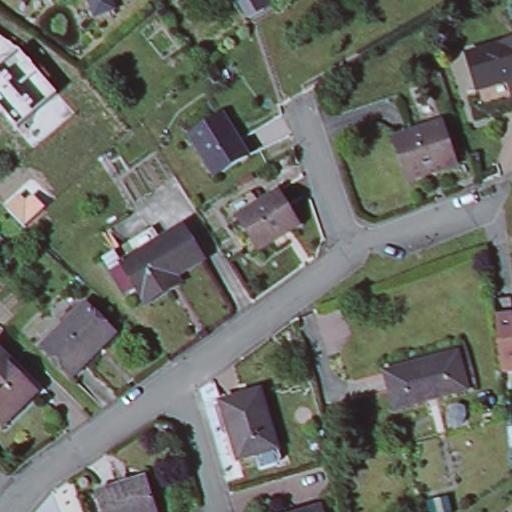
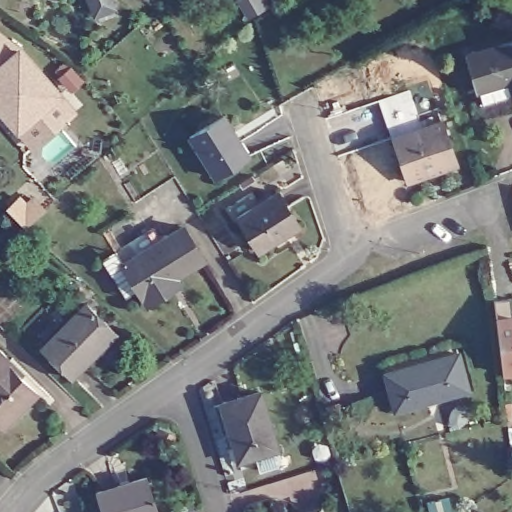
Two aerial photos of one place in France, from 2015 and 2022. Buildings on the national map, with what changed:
new [(21,45),(62,94),(77,113),(31,151),(2,115),(0,116),(0,30),(21,45)]
unchanged [(479,95),(470,59),(512,47),(512,86),(479,95)]
unchanged [(187,140),(220,116),(237,139),(249,155),(217,179),(206,166),(187,140)]
unchanged [(441,121),(454,160),(428,168),(430,173),(409,181),(394,136),(441,121)]
unchanged [(277,194),(298,230),(257,255),(235,219),(277,194)]
unchanged [(106,262),(105,261),(110,258),(118,253),(152,232),(160,245),(186,229),(206,260),(170,282),(174,289),(151,304),(142,290),(129,298),(113,274),(106,262)]
unchanged [(114,331),(96,350),(98,352),(71,378),(40,349),(85,304),(114,331)]
unchanged [(493,318),(512,315),(512,385),(500,386),(493,318)]
unchanged [(453,350),(463,388),(392,406),(382,369),(453,350)]
unchanged [(10,360),(24,375),(38,391),(33,395),(0,427),(0,353),(8,361),(10,360)]
unchanged [(254,391),(273,450),(236,461),(219,402),(254,391)]
unchanged [(142,476),(152,512),(99,512),(93,492),(142,476)]
unchanged [(316,508),(317,512),(302,512),(316,508)]

